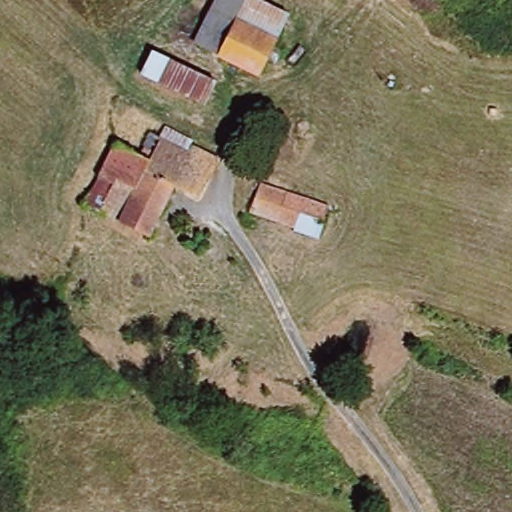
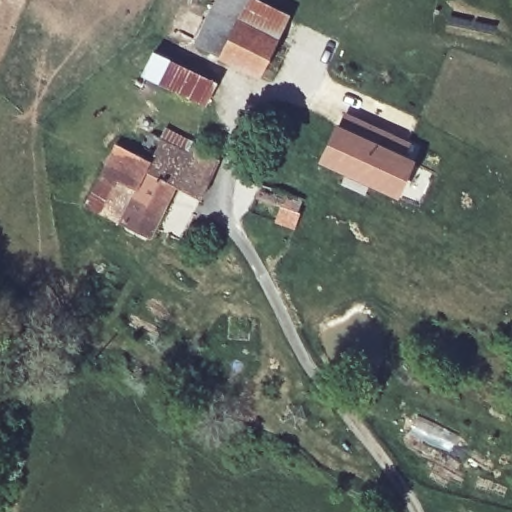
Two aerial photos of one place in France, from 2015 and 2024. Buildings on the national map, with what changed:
unchanged [(212,9),(240,20),(249,0),(251,0),(287,15),(272,51),(262,76),(195,45),(207,21),(212,9)]
unchanged [(158,51),(217,78),(209,96),(205,105),(146,78),(149,69),(158,51)]
new [(336,115),(401,146),(393,161),(402,165),(387,195),(315,161),(336,115)]
unchanged [(116,148),(137,158),(140,150),(149,155),(159,134),(185,146),(187,140),(217,154),(196,201),(174,191),(150,242),(85,212),(116,148)]
unchanged [(332,212),(320,241),(250,213),(261,184),(332,212)]

